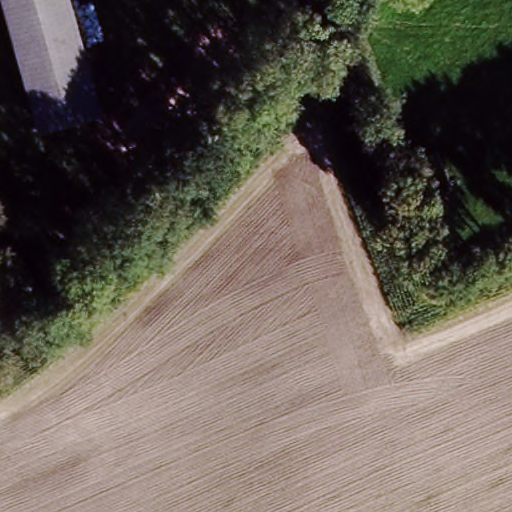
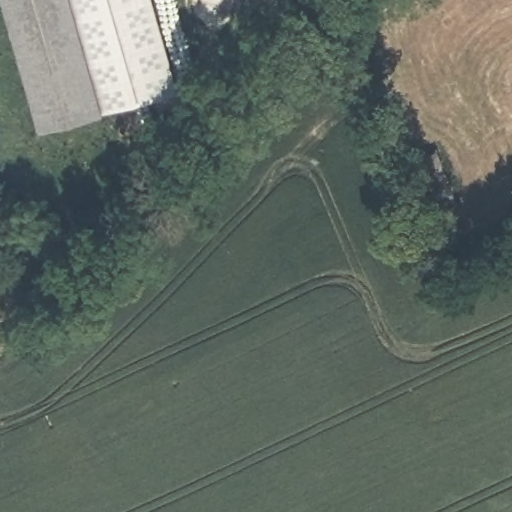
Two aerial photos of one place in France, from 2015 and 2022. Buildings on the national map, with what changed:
unchanged [(99,112),(45,126),(14,0),(71,0),(99,112)]
new [(71,0),(156,0),(178,84),(99,112),(71,0)]

